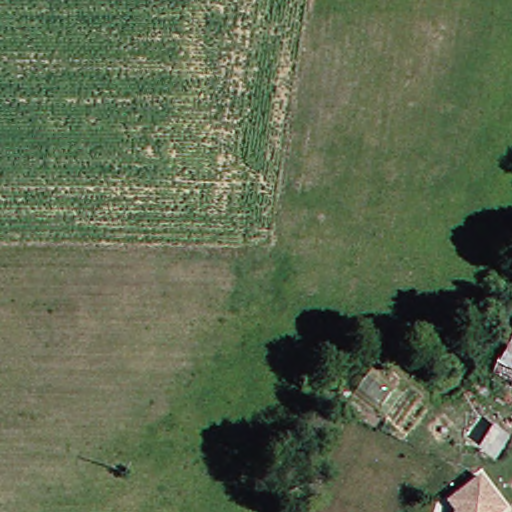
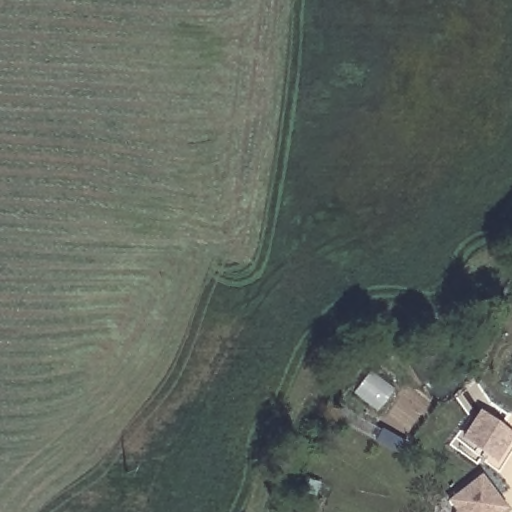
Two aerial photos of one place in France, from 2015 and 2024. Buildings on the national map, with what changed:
demolished [(499,352),(512,327),(512,359),(499,352)]
new [(478,409),(512,431),(512,436),(496,460),(460,437),(478,409)]
unchanged [(450,504),(481,479),(506,510),(504,512),(456,512),(450,504)]

